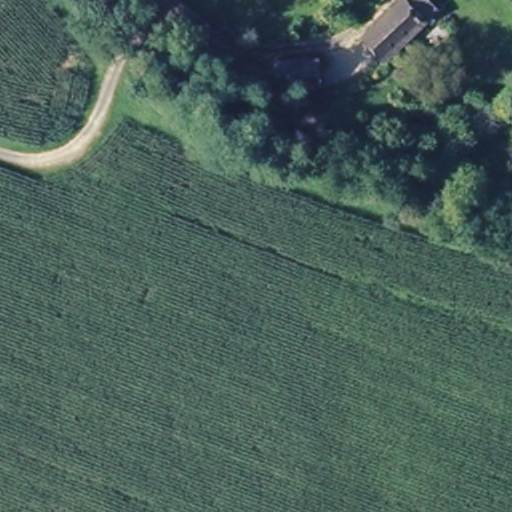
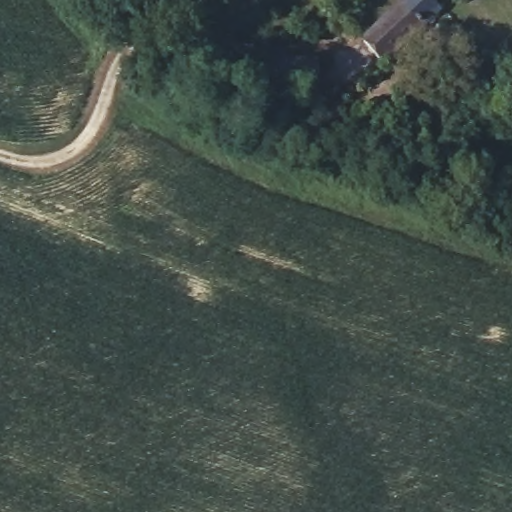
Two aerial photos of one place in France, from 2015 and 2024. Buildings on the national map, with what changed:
unchanged [(407,0),(433,0),(442,10),(385,62),(364,39),(407,0)]
unchanged [(272,90),(273,62),(317,60),(317,105),(272,108),(256,109),(256,91),(272,90)]

